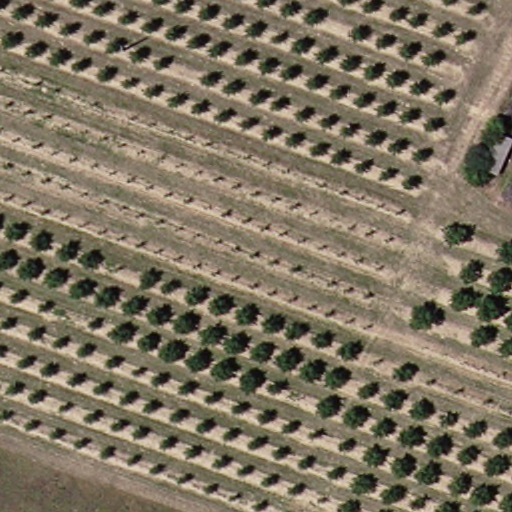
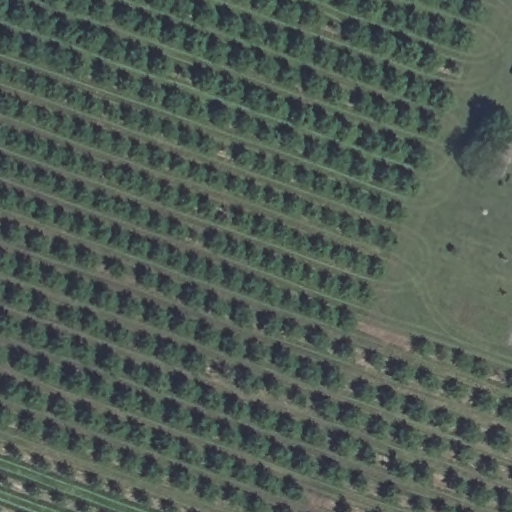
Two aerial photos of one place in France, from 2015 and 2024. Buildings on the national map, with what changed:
unchanged [(490,137),(507,144),(492,177),(475,170),(490,137)]

